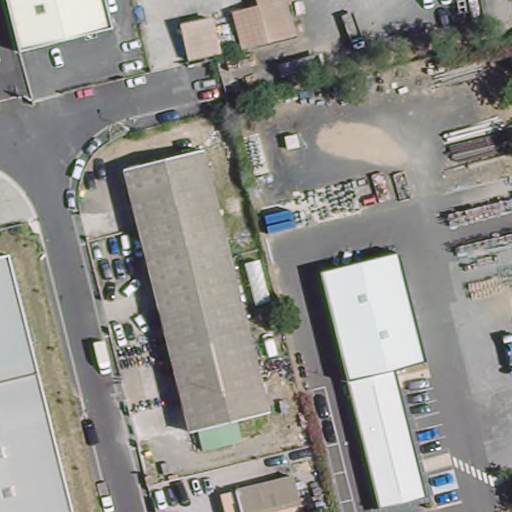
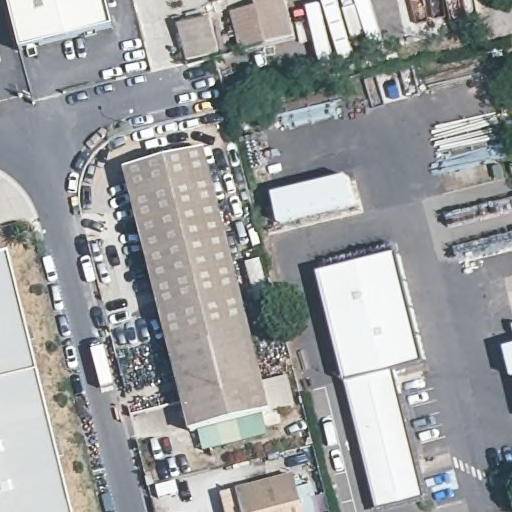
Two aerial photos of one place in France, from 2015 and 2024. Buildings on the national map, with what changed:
unchanged [(7,0),(105,0),(113,29),(20,53),(7,0)]
unchanged [(245,47),(236,15),(259,6),(258,0),(291,0),(300,33),(245,47)]
unchanged [(226,48),(192,59),(182,28),(214,19),(226,48)]
unchanged [(225,239),(147,259),(140,229),(125,171),(203,151),(225,239)]
new [(283,225),(275,194),(350,177),(357,209),(283,225)]
unchanged [(247,327),(169,346),(147,259),(225,239),(230,259),(247,327)]
unchanged [(321,267),(401,248),(427,359),(396,366),(427,494),(378,506),(321,267)]
unchanged [(73,512),(0,512),(0,262),(10,259),(73,512)]
unchanged [(268,414),(191,433),(169,346),(247,327),(268,414)]
unchanged [(302,512),(223,512),(219,494),(293,475),(302,512)]

